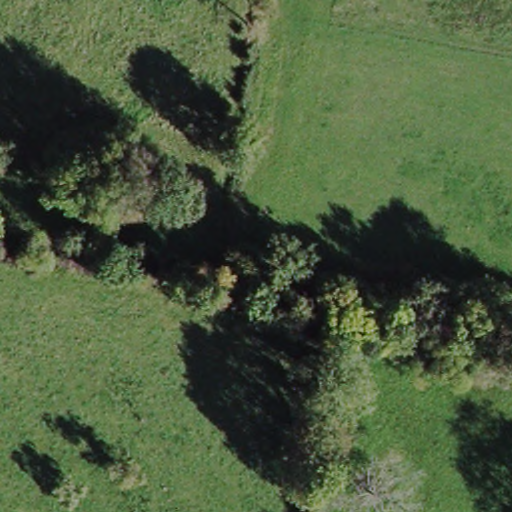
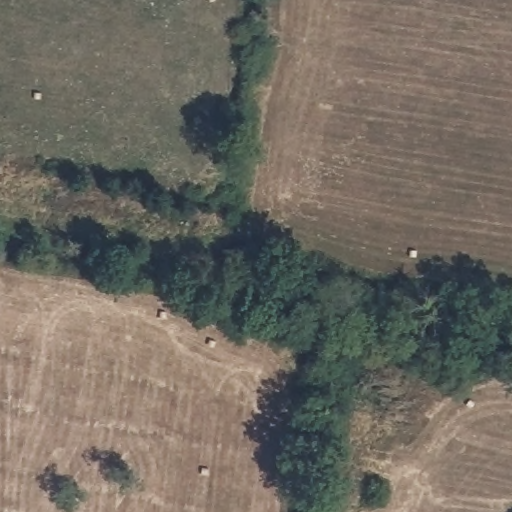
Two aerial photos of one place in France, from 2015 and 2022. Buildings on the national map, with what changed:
[]

